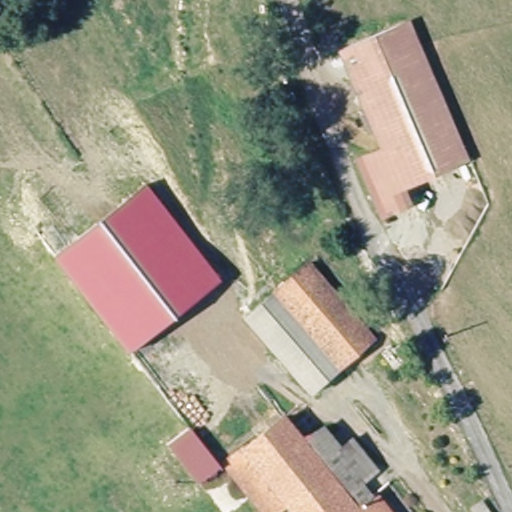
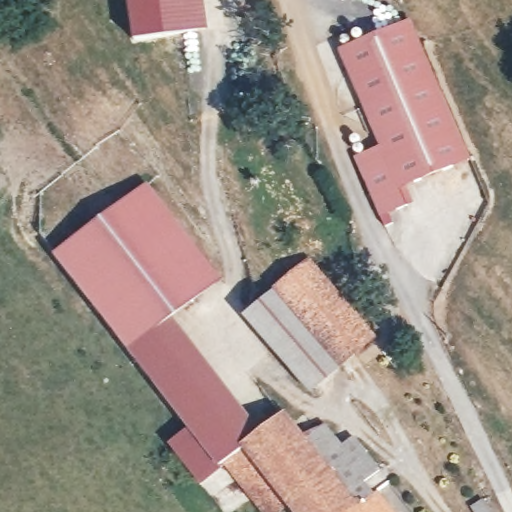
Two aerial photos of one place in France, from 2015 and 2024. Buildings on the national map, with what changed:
new [(132,40),(127,0),(204,0),(209,29),(132,40)]
unchanged [(468,160),(400,189),(407,205),(380,216),(358,164),(355,155),(380,144),(341,50),(409,22),(468,160)]
unchanged [(147,180),(224,279),(174,317),(130,351),(54,253),(147,180)]
unchanged [(287,284),(317,263),(377,339),(348,361),(287,284)]
unchanged [(252,310),(287,284),(348,361),(313,387),(252,310)]
new [(174,317),(261,433),(247,444),(225,461),(202,482),(169,441),(188,429),(130,351),(174,317)]
unchanged [(287,413),(304,436),(329,421),(347,446),(360,437),(384,469),(377,474),(361,451),(327,477),(281,418),(287,413)]
unchanged [(289,503),(247,444),(261,433),(281,418),(327,477),(361,451),(377,474),(371,479),(394,512),(295,512),(289,503)]
unchanged [(276,512),(262,512),(225,461),(247,444),(289,503),(276,512)]
demolished [(496,512),(489,512),(493,508),(496,512)]

